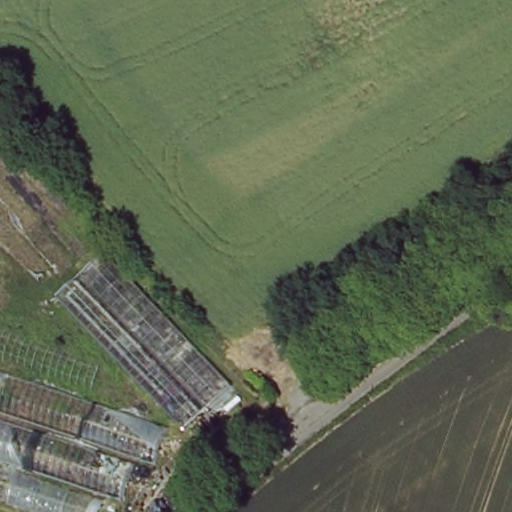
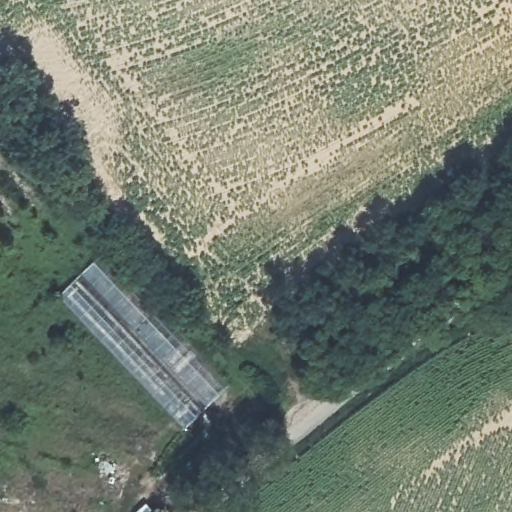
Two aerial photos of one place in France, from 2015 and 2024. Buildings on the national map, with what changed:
unchanged [(53,299),(101,252),(227,385),(180,427),(53,299)]
demolished [(0,373),(161,425),(154,461),(133,458),(121,494),(103,496),(96,512),(35,512),(0,501),(0,373)]

